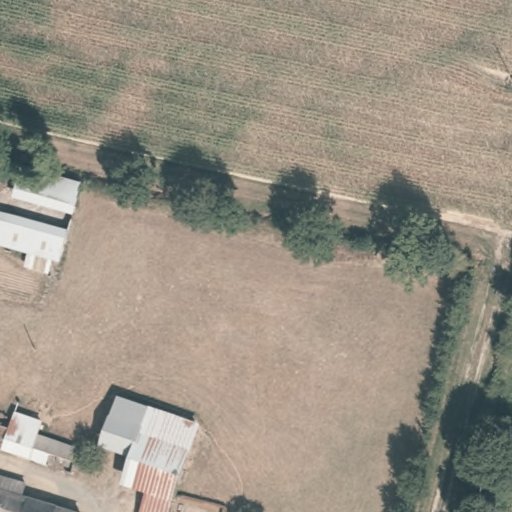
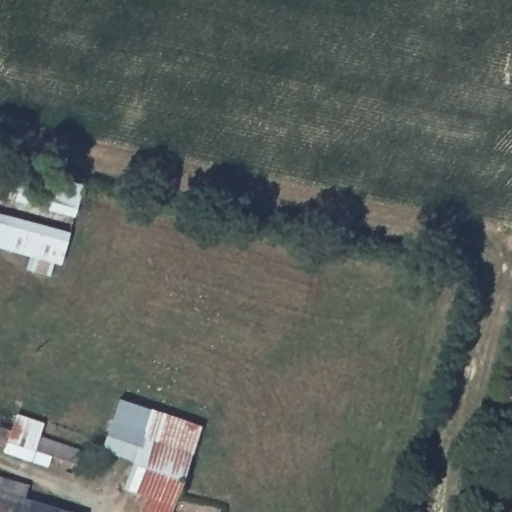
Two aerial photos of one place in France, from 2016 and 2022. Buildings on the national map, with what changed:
unchanged [(86,186),(78,217),(18,199),(23,172),(86,186)]
unchanged [(58,258),(0,242),(0,216),(65,233),(58,258)]
unchanged [(155,416),(140,462),(101,450),(117,403),(155,416)]
unchanged [(32,459),(5,451),(12,424),(17,426),(20,413),(46,420),(42,435),(84,446),(79,462),(51,454),(47,463),(32,459)]
unchanged [(132,487),(140,462),(155,416),(202,432),(175,512),(150,512),(155,494),(132,487)]
unchanged [(26,498),(74,512),(0,512),(0,477),(29,486),(26,498)]

